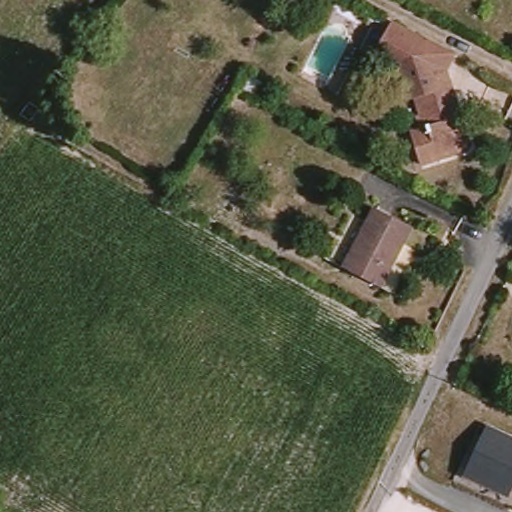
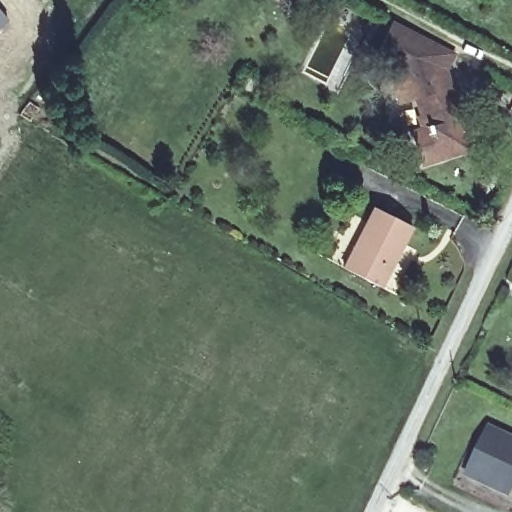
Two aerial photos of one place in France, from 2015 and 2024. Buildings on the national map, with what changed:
new [(0,28),(0,9),(9,19),(0,28)]
unchanged [(426,134),(431,132),(427,120),(422,121),(415,99),(400,104),(389,69),(374,61),(393,26),(453,59),(444,74),(467,142),(460,156),(422,169),(413,138),(426,134)]
unchanged [(372,283),(344,268),(375,208),(411,226),(393,260),(378,286),(372,283)]
unchanged [(486,426),(512,438),(512,499),(465,478),(486,426)]

